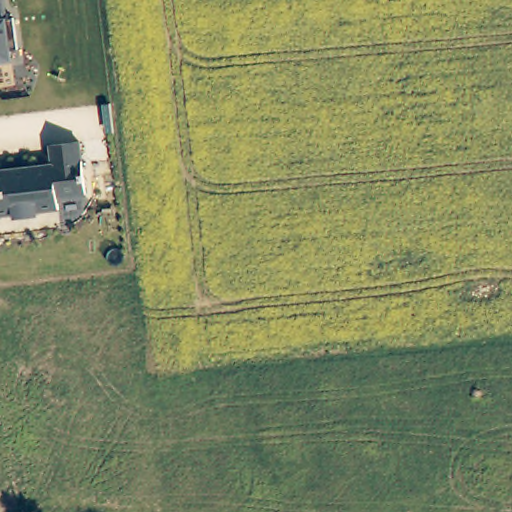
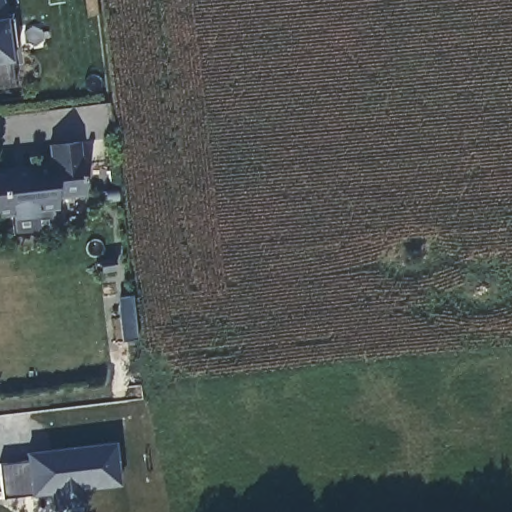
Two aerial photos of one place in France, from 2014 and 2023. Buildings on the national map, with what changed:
unchanged [(4,0),(7,18),(12,18),(16,49),(9,50),(11,61),(0,63),(0,0),(4,0)]
unchanged [(85,195),(56,199),(57,210),(0,217),(0,171),(52,165),(50,146),(79,143),(85,195)]
new [(134,304),(136,316),(139,340),(124,342),(118,298),(133,296),(134,304)]
new [(84,490),(86,506),(52,509),(50,494),(3,499),(0,475),(0,465),(26,462),(25,452),(114,442),(120,485),(84,490)]

